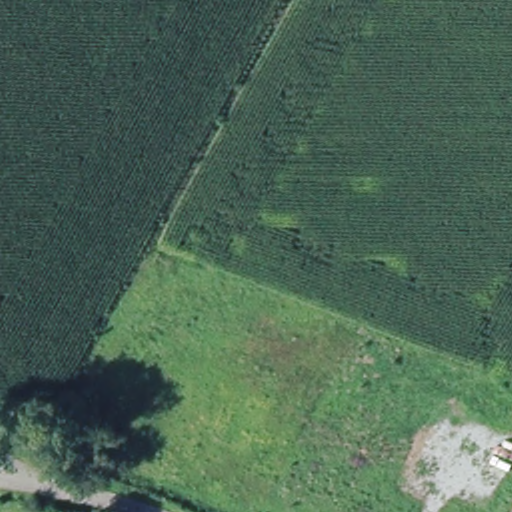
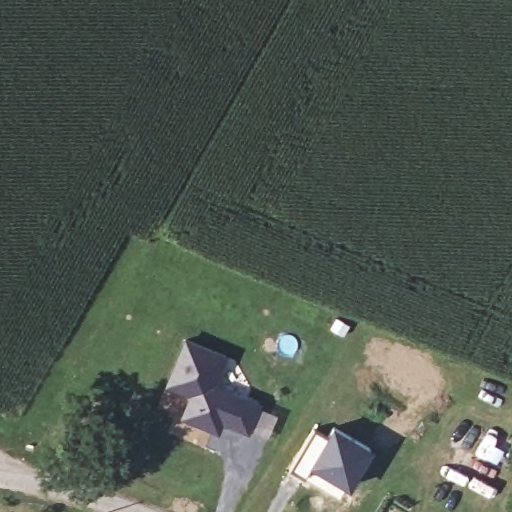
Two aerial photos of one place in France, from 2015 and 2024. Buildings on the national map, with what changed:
new [(186,341),(225,357),(212,387),(258,406),(246,433),(221,422),(218,428),(211,431),(180,418),(190,395),(166,385),(186,341)]
new [(315,430),(323,435),(332,423),(372,449),(339,498),(314,482),(320,473),(309,465),(303,475),(291,468),(315,430)]

